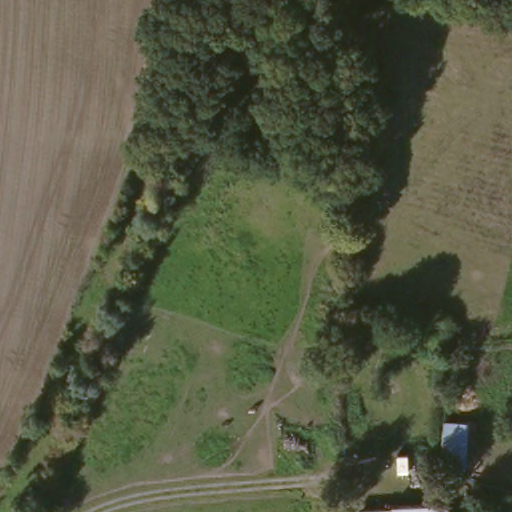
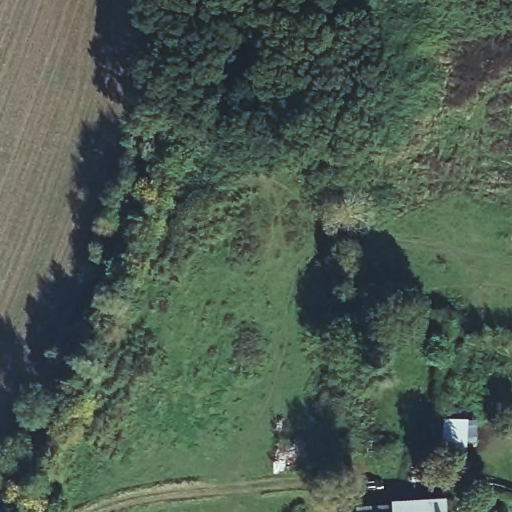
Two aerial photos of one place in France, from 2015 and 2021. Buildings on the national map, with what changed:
unchanged [(433,19),(437,0),(481,13),(476,29),(433,19)]
unchanged [(445,466),(446,419),(471,419),(468,467),(445,466)]
unchanged [(361,510),(392,508),(395,504),(448,502),(449,512),(361,512),(361,510)]

